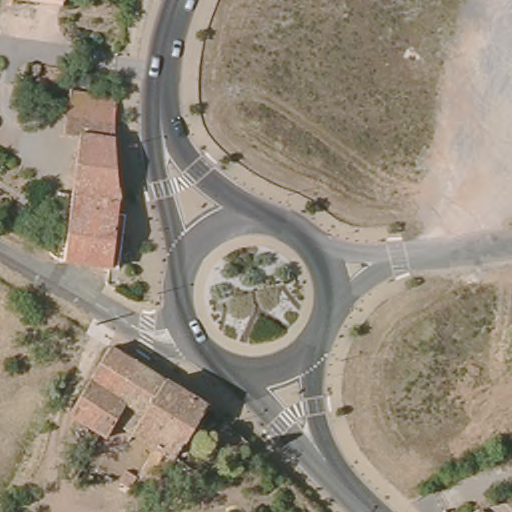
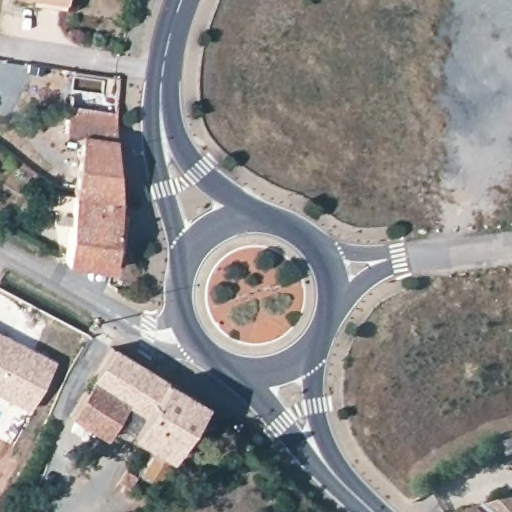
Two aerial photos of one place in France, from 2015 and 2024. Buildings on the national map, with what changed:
unchanged [(30,3),(30,0),(64,0),(63,7),(30,3)]
unchanged [(115,158),(119,202),(71,199),(78,140),(64,138),(72,77),(72,73),(87,75),(85,93),(117,97),(117,102),(115,122),(115,142),(115,158)]
unchanged [(113,241),(112,245),(112,249),(112,252),(111,255),(110,260),(110,263),(109,267),(109,270),(62,264),(71,199),(119,202),(117,215),(113,241)]
new [(0,330),(55,362),(40,388),(30,408),(0,392),(0,330)]
unchanged [(202,405),(169,458),(155,482),(140,473),(154,450),(130,435),(127,440),(119,435),(122,430),(115,425),(106,440),(99,435),(88,429),(79,423),(75,421),(70,419),(67,417),(109,350),(202,405)]
unchanged [(130,490),(117,483),(124,473),(136,480),(130,490)]
unchanged [(512,497),(512,512),(493,512),(485,505),(512,497)]
unchanged [(466,512),(474,507),(480,512),(466,512)]

